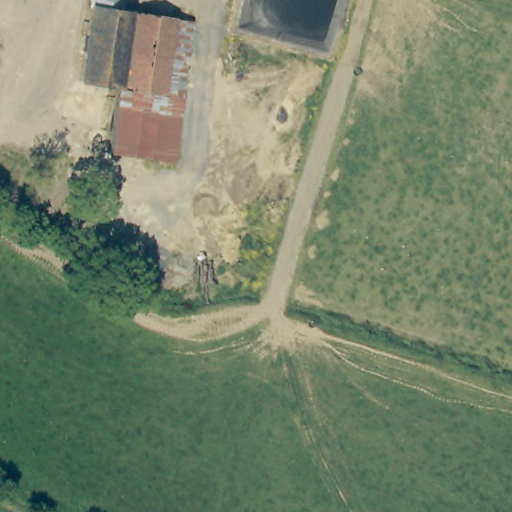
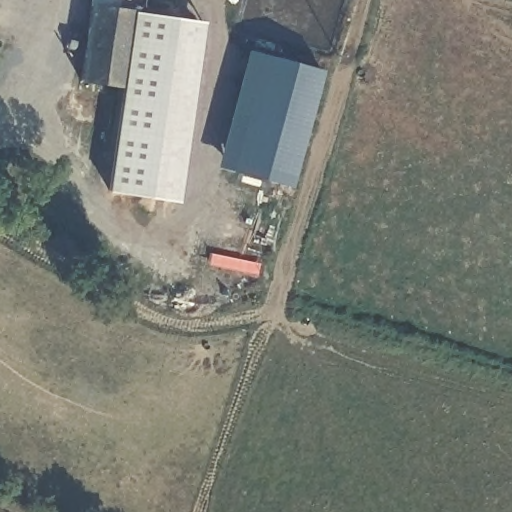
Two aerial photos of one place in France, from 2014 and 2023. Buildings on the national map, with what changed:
unchanged [(122,83),(82,77),(93,0),(126,0),(124,9),(133,10),(122,83)]
unchanged [(177,17),(169,91),(122,83),(133,10),(177,17)]
unchanged [(169,91),(177,17),(192,20),(179,132),(168,158),(112,149),(122,83),(169,91)]
new [(218,166),(249,51),(323,71),(291,187),(218,166)]

